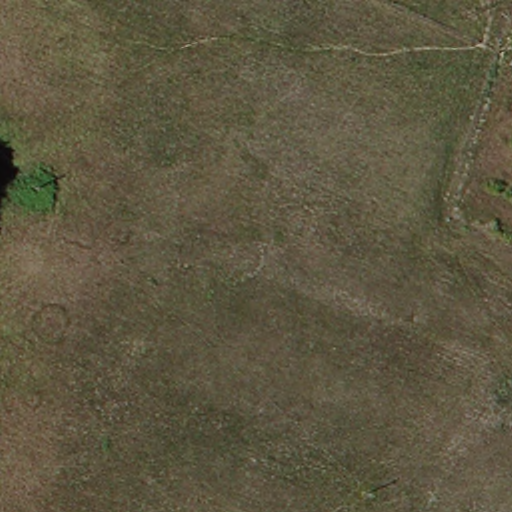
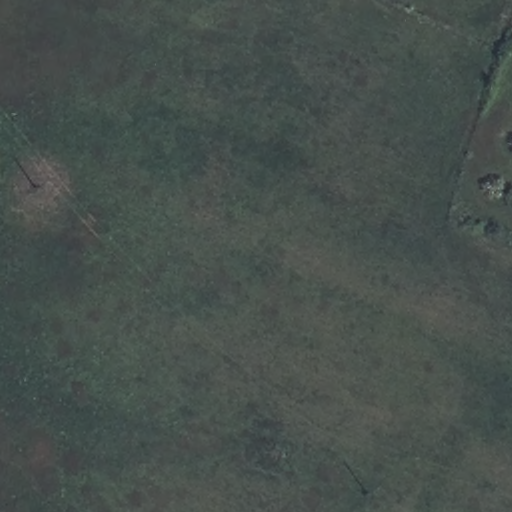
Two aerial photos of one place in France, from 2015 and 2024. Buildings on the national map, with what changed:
[]

